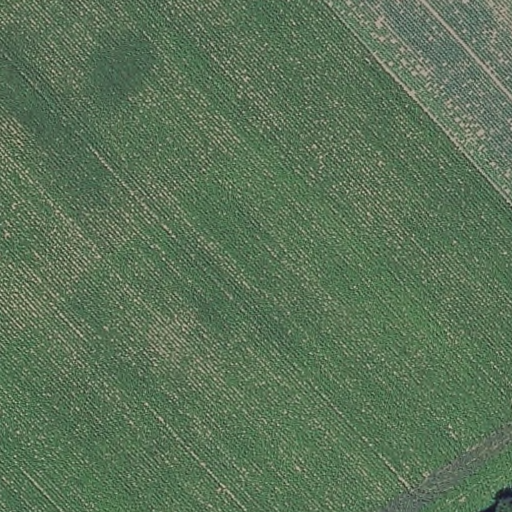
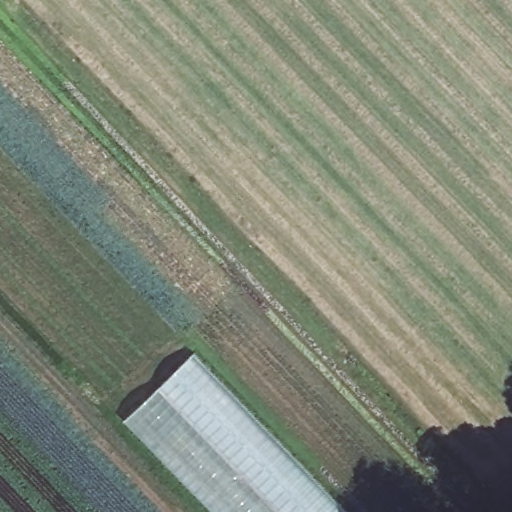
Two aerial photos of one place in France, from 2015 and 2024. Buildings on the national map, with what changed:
new [(123,421),(194,354),(348,512),(211,512),(123,421)]

